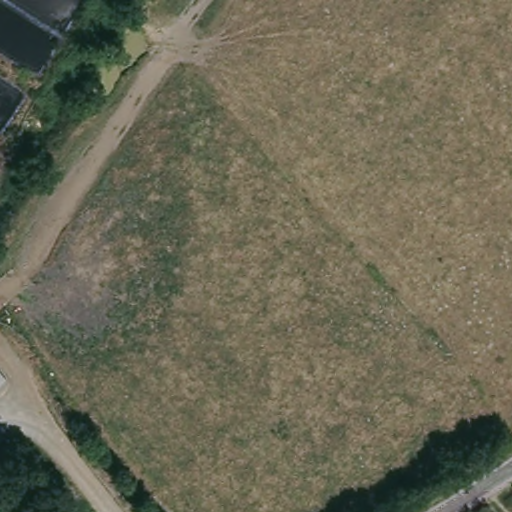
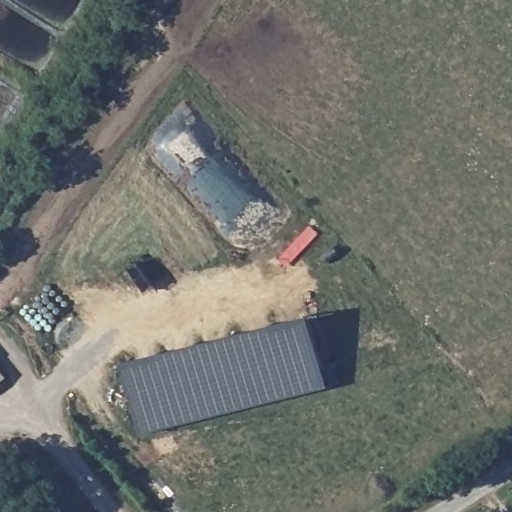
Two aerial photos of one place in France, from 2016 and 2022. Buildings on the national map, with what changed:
new [(125,361),(311,313),(328,386),(143,433),(125,361)]
unchanged [(12,375),(0,384),(0,361),(12,375)]
unchanged [(19,470),(6,481),(0,473),(0,449),(19,470)]

